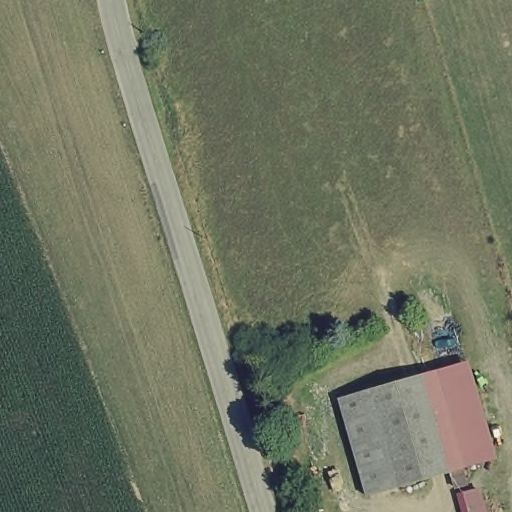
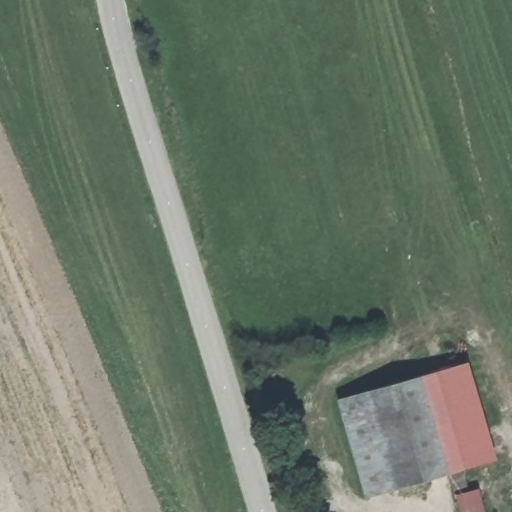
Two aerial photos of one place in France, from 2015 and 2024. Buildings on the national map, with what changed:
unchanged [(467,364),(479,403),(496,459),(452,475),(362,501),(339,403),(422,373),(467,364)]
unchanged [(489,512),(463,512),(460,496),(483,489),(489,512)]

